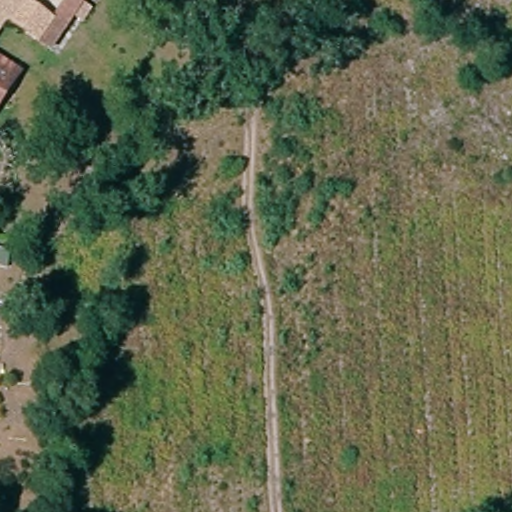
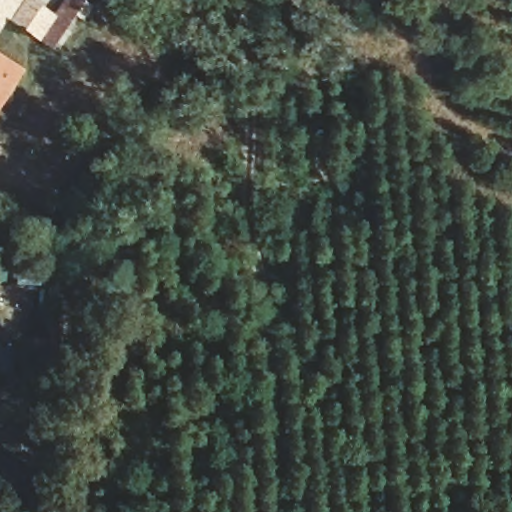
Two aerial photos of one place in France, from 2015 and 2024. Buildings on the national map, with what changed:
unchanged [(54,23),(69,0),(86,0),(82,6),(90,11),(82,24),(74,19),(51,51),(42,45),(5,20),(0,28),(0,0),(31,0),(28,5),(54,23)]
unchanged [(18,76),(0,101),(0,63),(14,73),(18,76)]

